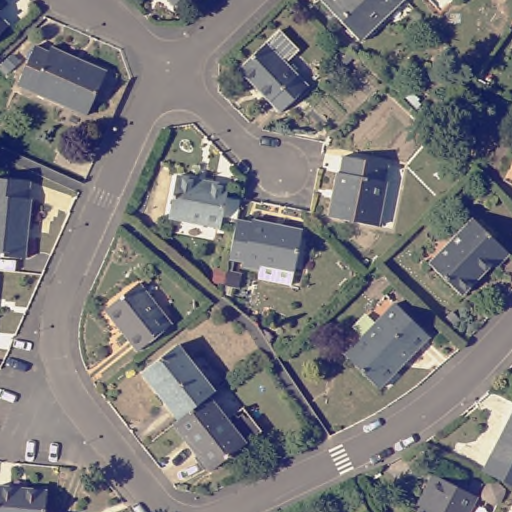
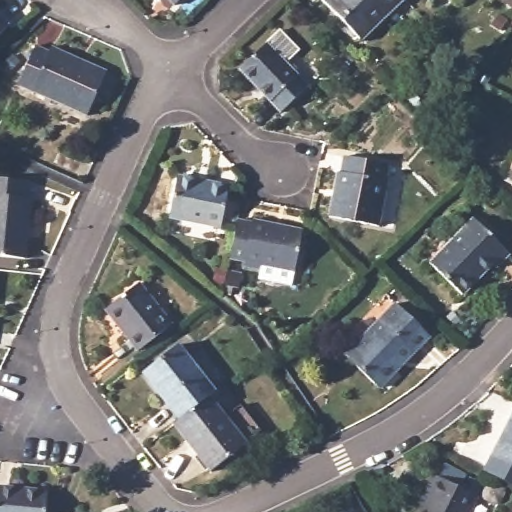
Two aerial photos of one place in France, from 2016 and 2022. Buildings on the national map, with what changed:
unchanged [(172,0),(184,0),(177,6),(172,0)]
unchanged [(320,0),(400,0),(358,41),(320,0)]
unchanged [(0,16),(12,27),(0,39),(0,11),(2,14),(0,16)]
unchanged [(38,42),(52,47),(55,43),(110,67),(90,112),(21,81),(38,42)]
unchanged [(265,45),(306,87),(279,113),(238,70),(265,45)]
unchanged [(337,174),(340,175),(343,157),(385,165),(381,182),(384,182),(375,227),(328,219),(337,174)]
unchanged [(175,178),(226,187),(219,227),(168,217),(175,178)]
unchanged [(30,197),(33,197),(26,259),(0,256),(0,179),(32,182),(30,197)]
unchanged [(262,261),(246,257),(246,253),(232,251),(239,211),(255,214),(255,211),(305,221),(297,262),(295,277),(261,270),(262,261)]
unchanged [(470,220),(507,254),(493,268),(490,266),(460,295),(428,264),(470,220)]
unchanged [(146,279),(179,321),(147,347),(114,305),(146,279)]
unchanged [(402,305),(436,337),(386,388),(353,356),(402,305)]
unchanged [(141,375),(175,346),(212,393),(207,398),(177,422),(141,375)]
unchanged [(241,410),(260,433),(244,445),(221,463),(209,473),(171,427),(177,422),(207,398),(225,422),(241,410)]
unchanged [(486,467),(512,415),(512,480),(486,467)]
unchanged [(473,496),(464,512),(415,512),(419,504),(414,502),(422,487),(430,472),(473,496)]
unchanged [(47,512),(0,512),(0,482),(50,487),(47,512)]

